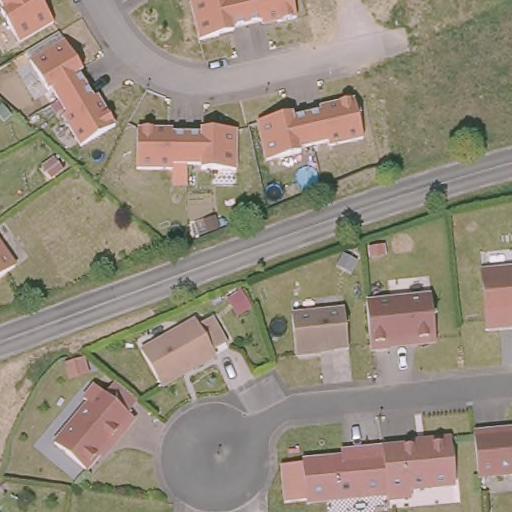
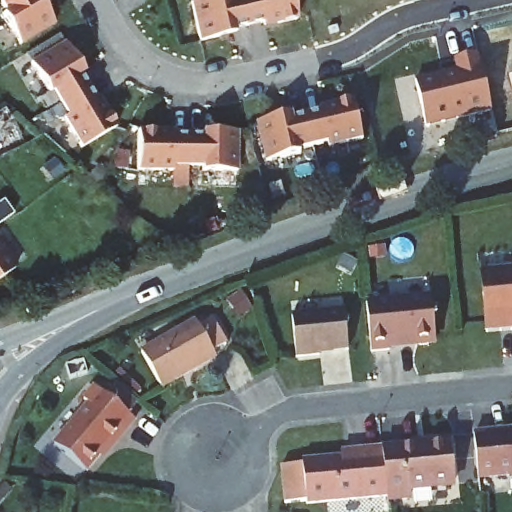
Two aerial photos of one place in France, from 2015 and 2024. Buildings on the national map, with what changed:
unchanged [(20,45),(2,13),(5,12),(0,5),(0,0),(39,0),(54,25),(20,45)]
unchanged [(262,27),(260,21),(233,28),(233,32),(199,40),(191,2),(200,0),(293,0),(297,19),(262,27)]
unchanged [(116,128),(80,147),(63,117),(66,115),(53,92),(49,94),(32,63),(65,44),(83,71),(80,74),(94,98),(100,96),(116,128)]
new [(427,127),(417,80),(456,70),(454,59),(477,54),(480,64),(483,63),(492,111),(427,127)]
unchanged [(321,112),(321,108),(353,100),(364,140),(329,148),(328,142),(300,148),(301,152),(266,161),(258,123),(293,115),(294,118),(321,112)]
unchanged [(174,133),(201,133),(201,129),(237,131),(237,170),(200,170),(200,166),(188,167),(187,189),(171,188),(172,171),(137,170),(137,128),(173,128),(174,133)]
unchanged [(20,268),(0,282),(0,240),(20,268)]
unchanged [(480,270),(512,268),(512,320),(485,322),(480,270)]
unchanged [(371,298),(436,291),(440,335),(436,335),(433,339),(425,340),(421,337),(394,340),(395,345),(376,347),(371,298)]
unchanged [(349,305),(353,344),(324,346),(324,349),(301,351),(296,310),(349,305)]
unchanged [(167,383),(146,347),(200,315),(203,320),(216,312),(231,338),(218,346),(221,351),(196,366),(188,371),(167,383)]
unchanged [(135,421),(124,433),(121,431),(87,471),(55,445),(89,405),(84,401),(95,387),(135,421)]
unchanged [(496,431),(512,430),(512,470),(483,473),(479,429),(496,428),(496,431)]
unchanged [(386,493),(382,448),(425,443),(424,438),(448,436),(453,481),(407,485),(408,495),(387,498),(386,493)]
unchanged [(295,466),(303,465),(302,459),(367,452),(366,447),(381,445),(382,448),(386,493),(306,501),(306,495),(298,496),(295,466)]

